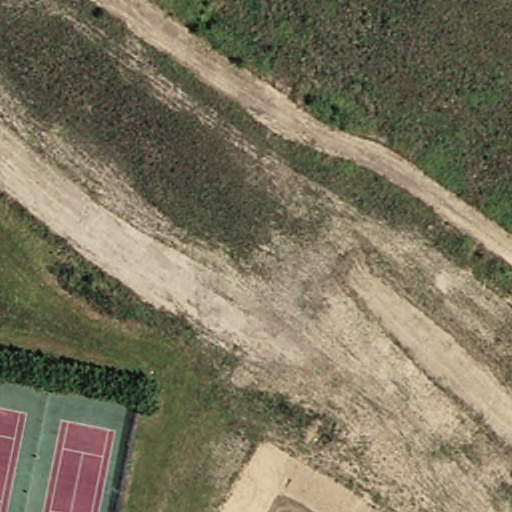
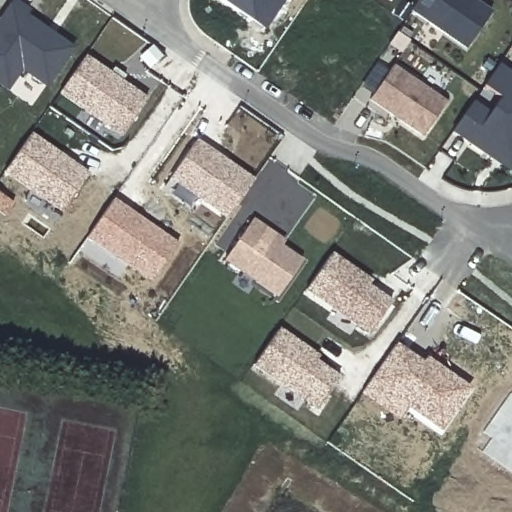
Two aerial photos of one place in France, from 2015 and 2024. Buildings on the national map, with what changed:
new [(262,32),(251,24),(215,0),(284,0),(262,32)]
new [(494,13),(470,48),(415,11),(423,0),(475,0),(494,13)]
new [(11,89),(0,80),(0,26),(18,1),(33,11),(30,16),(51,31),(57,35),(76,49),(54,81),(51,86),(25,68),(11,89)]
new [(62,92),(88,55),(150,98),(124,135),(117,146),(77,119),(85,108),(62,92)]
new [(497,160),(456,132),(475,103),(493,115),(504,99),(487,88),(502,66),(512,73),(512,169),(497,160)]
new [(397,68),(450,104),(428,136),(375,100),(397,68)]
new [(6,171),(32,134),(90,175),(64,212),(55,224),(22,201),(31,189),(6,171)]
new [(200,140),(257,180),(231,216),(174,176),(200,140)]
new [(180,244),(155,280),(90,234),(115,199),(180,244)]
new [(270,232),(287,243),(285,248),(305,263),(281,298),(229,260),(256,221),(270,232)]
new [(368,334),(305,290),(330,255),(347,267),(367,282),(365,286),(343,272),(389,304),(368,334)]
new [(337,378),(315,409),(253,365),(277,330),(295,342),(291,347),(337,378)]
new [(291,347),(295,342),(315,357),(312,362),(291,347)]
new [(401,346),(428,365),(431,360),(475,390),(447,430),(416,408),(407,420),(368,393),(401,346)]

